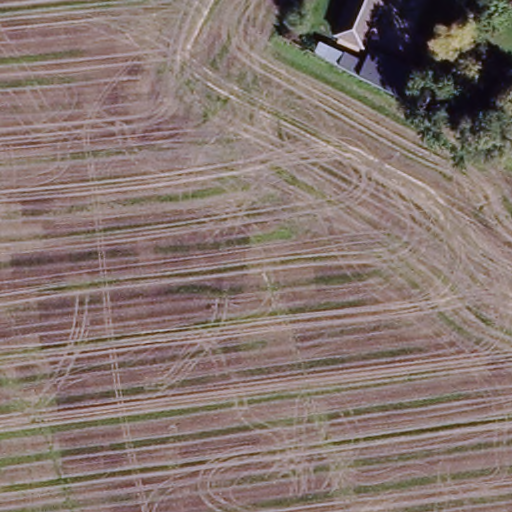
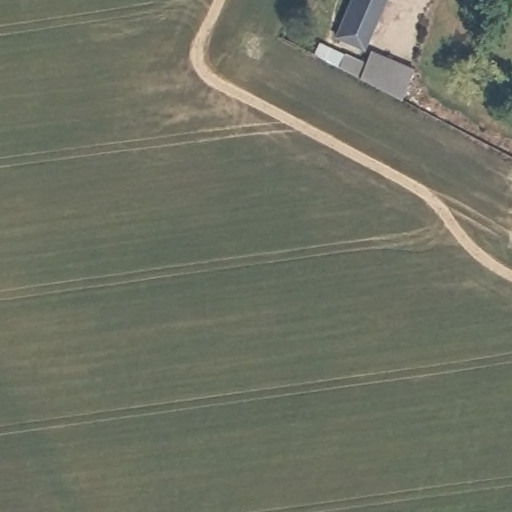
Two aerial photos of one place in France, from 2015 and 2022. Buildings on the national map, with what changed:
unchanged [(386,0),(365,45),(338,33),(353,0),(386,0)]

